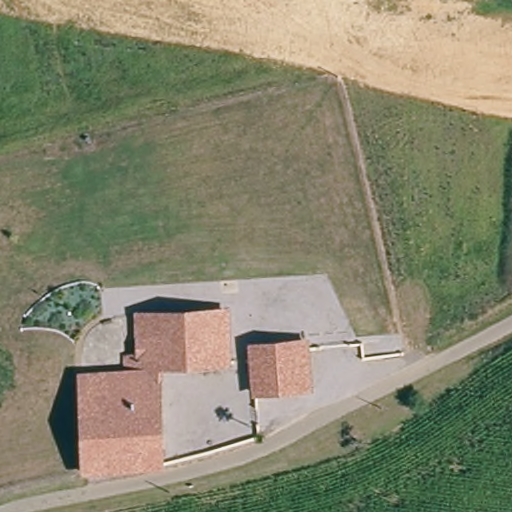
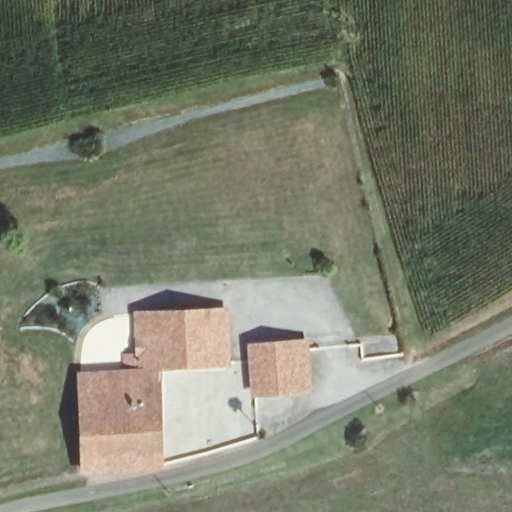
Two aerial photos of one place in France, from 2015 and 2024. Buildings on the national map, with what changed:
unchanged [(85,374),(128,374),(129,354),(143,354),(143,316),(230,314),(228,366),(160,367),(159,464),(83,469),(85,374)]
unchanged [(252,344),(277,342),(278,390),(256,391),(252,344)]
unchanged [(310,387),(278,390),(277,342),(307,343),(310,382),(310,387)]

